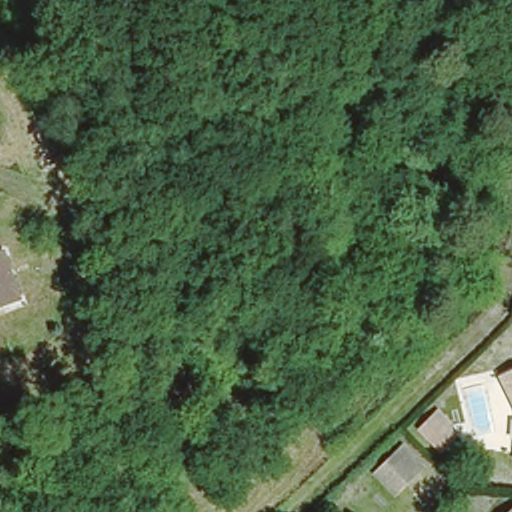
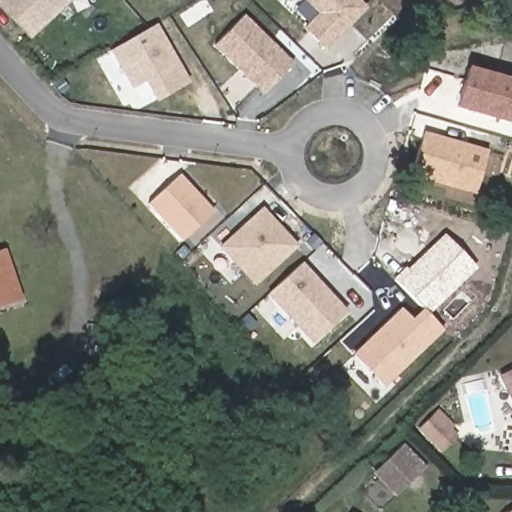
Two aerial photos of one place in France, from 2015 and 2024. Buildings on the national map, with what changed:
new [(0,9),(0,0),(72,0),(28,41),(0,9)]
new [(325,50),(301,27),(317,14),(303,0),(359,0),(367,8),(325,50)]
new [(213,47),(244,16),(292,64),(262,95),(213,47)]
new [(156,24),(190,83),(155,103),(143,81),(130,88),(109,50),(156,24)]
new [(455,110),(467,68),(512,80),(512,125),(455,110)]
new [(489,151),(474,195),(410,177),(423,132),(489,151)]
new [(213,211),(180,242),(147,205),(180,175),(213,211)]
new [(297,249),(259,284),(223,246),(261,211),(297,249)]
new [(391,278),(404,266),(407,270),(443,233),(475,268),(427,315),(421,309),(391,278)]
unchanged [(0,304),(0,251),(8,249),(24,297),(0,304)]
new [(312,345),(266,296),(302,263),(349,314),(312,345)]
new [(381,385),(352,354),(399,309),(410,320),(421,309),(440,329),(381,385)]
unchanged [(83,368),(40,374),(21,376),(17,333),(100,325),(106,373),(84,374),(83,368)]
unchanged [(496,374),(512,366),(512,408),(496,374)]
new [(435,416),(457,438),(443,452),(421,431),(435,416)]
unchanged [(373,472),(395,450),(400,445),(423,467),(417,473),(395,495),(373,472)]
unchanged [(512,505),(512,512),(504,512),(512,505)]

